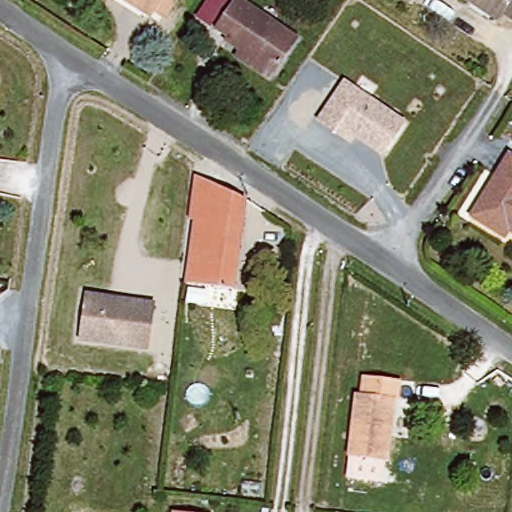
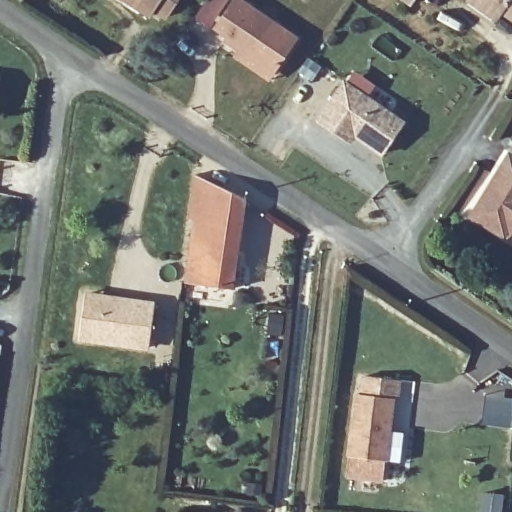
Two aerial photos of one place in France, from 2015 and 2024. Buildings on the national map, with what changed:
unchanged [(123,0),(180,0),(168,20),(156,13),(151,19),(123,0)]
unchanged [(232,43),(219,34),(222,30),(209,21),(224,0),(241,0),(290,32),(267,68),(261,77),(226,52),(232,43)]
unchanged [(406,0),(413,0),(411,3),(406,0)]
unchanged [(474,0),(512,0),(512,19),(505,14),(503,18),(474,0)]
unchanged [(383,154),(356,136),(350,143),(319,122),(346,81),(405,121),(383,154)]
unchanged [(506,239),(472,219),(508,157),(512,160),(512,229),(506,239)]
unchanged [(197,215),(194,212),(199,172),(247,195),(240,254),(194,249),(197,215)]
unchanged [(190,280),(194,249),(240,254),(235,285),(190,280)]
unchanged [(145,347),(76,336),(82,301),(83,293),(126,300),(152,302),(145,347)]
unchanged [(363,393),(367,371),(404,378),(400,399),(396,399),(387,460),(351,455),(360,392),(363,393)]

